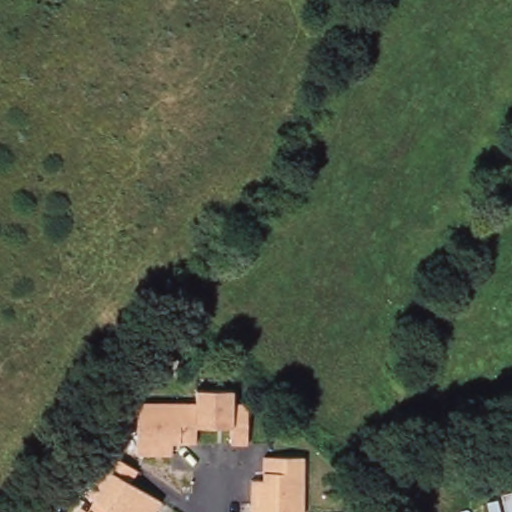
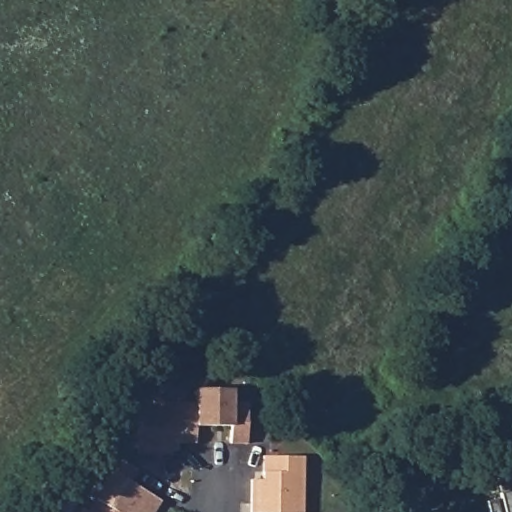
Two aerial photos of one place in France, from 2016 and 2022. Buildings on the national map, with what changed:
unchanged [(195,402),(196,388),(232,388),(231,402),(247,403),(247,443),(230,442),(230,425),(195,425),(195,402)]
unchanged [(195,425),(195,442),(171,442),(171,454),(136,453),(136,402),(195,402),(195,425)]
unchanged [(81,507),(88,511),(94,500),(88,496),(112,455),(136,470),(130,482),(161,500),(154,512),(78,512),(81,507)]
unchanged [(303,456),(302,512),(251,512),(251,480),(263,480),(263,456),(303,456)]
unchanged [(499,493),(512,489),(512,512),(504,512),(499,493)]

